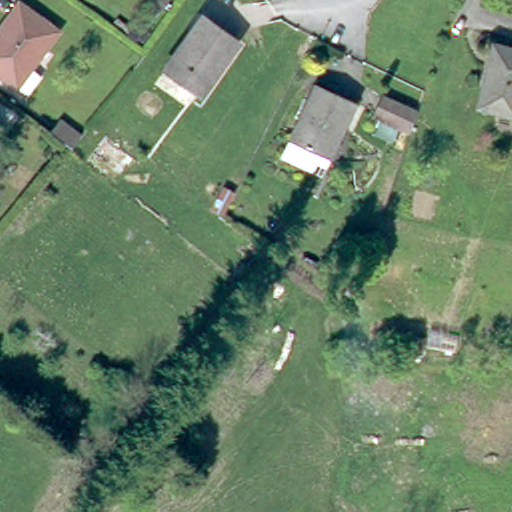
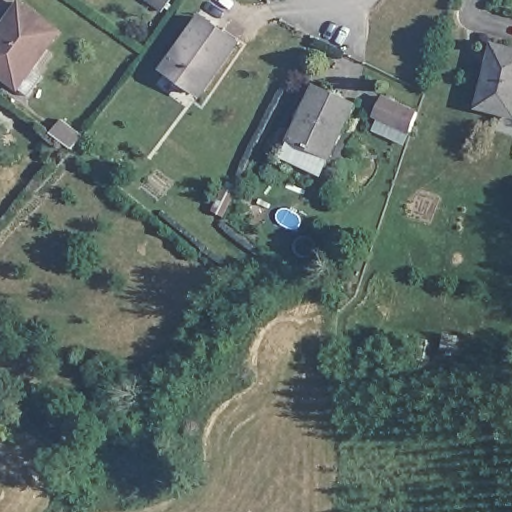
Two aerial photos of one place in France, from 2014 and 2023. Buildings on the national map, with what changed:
unchanged [(161,11),(156,7),(148,2),(150,0),(169,0),(161,11)]
unchanged [(41,76),(26,96),(0,76),(0,28),(19,2),(58,31),(31,68),(41,76)]
unchanged [(201,95),(166,70),(203,17),(238,42),(201,95)]
unchanged [(503,47),(512,49),(512,116),(478,108),(494,44),(503,47)]
unchanged [(331,158),(290,139),(316,85),(356,104),(331,158)]
unchanged [(379,102),(413,117),(410,125),(406,137),(369,120),(379,102)]
unchanged [(68,152),(46,136),(57,122),(79,140),(68,152)]

